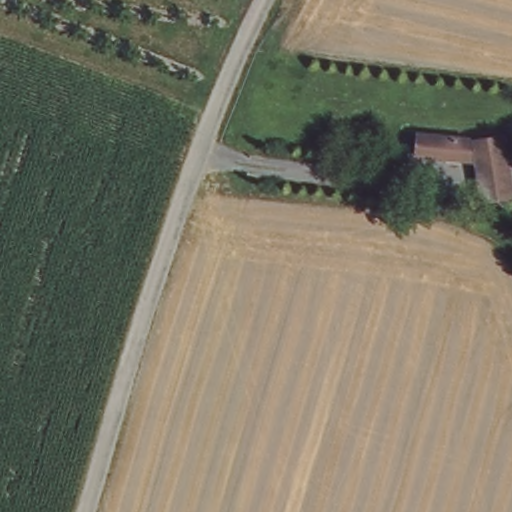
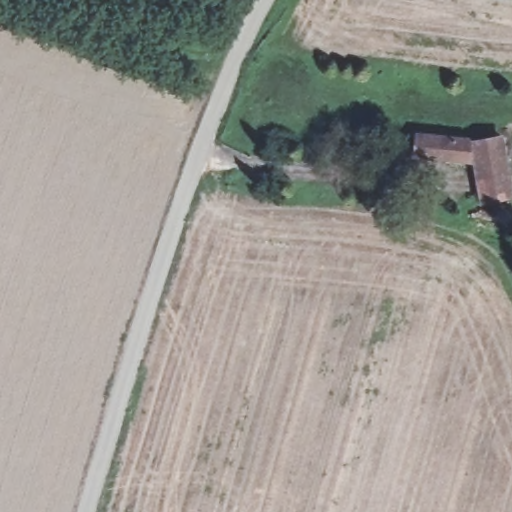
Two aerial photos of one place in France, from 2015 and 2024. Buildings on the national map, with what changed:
unchanged [(476,157),(417,152),(420,129),(503,136),(502,160),(476,157)]
unchanged [(476,157),(502,160),(502,201),(491,200),(474,198),(475,187),(476,157)]

